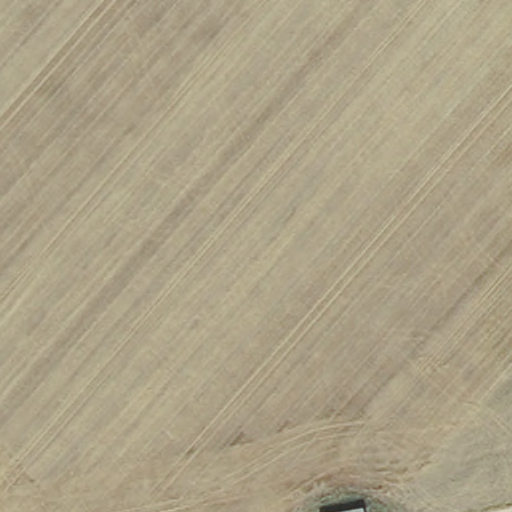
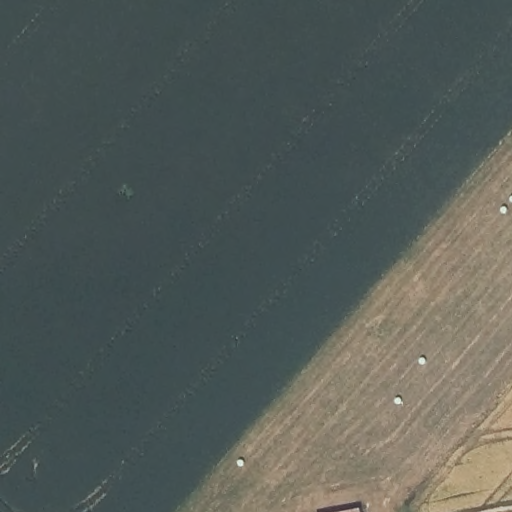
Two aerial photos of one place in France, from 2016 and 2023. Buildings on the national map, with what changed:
unchanged [(362,506),(363,512),(332,512),(362,506)]

